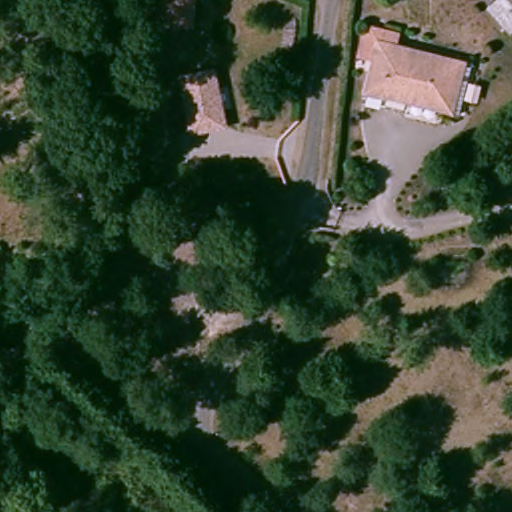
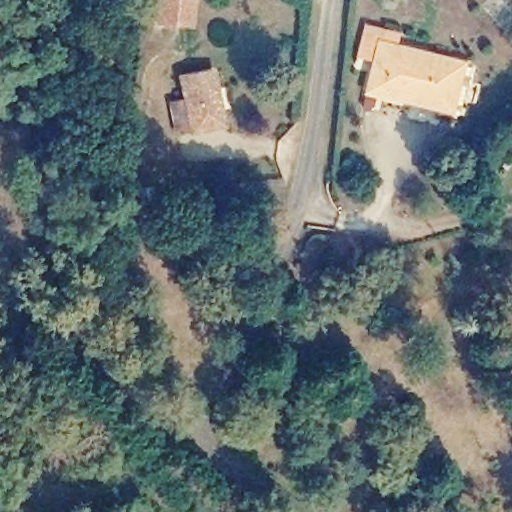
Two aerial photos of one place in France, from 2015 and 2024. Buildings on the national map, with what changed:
new [(156,22),(157,0),(195,0),(193,26),(156,22)]
unchanged [(470,61),(456,110),(365,84),(380,35),(470,61)]
unchanged [(229,121),(184,127),(179,97),(192,95),(188,72),(218,66),(229,121)]

